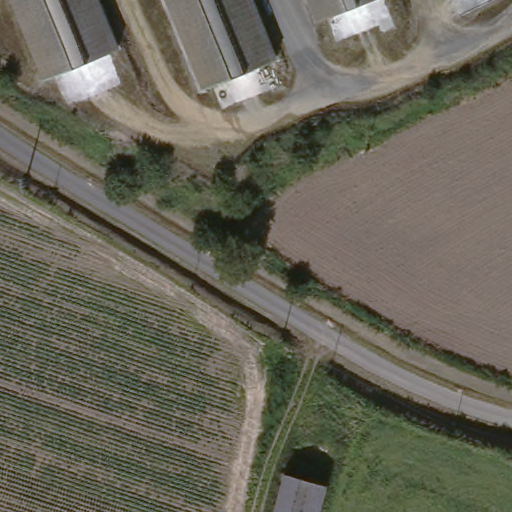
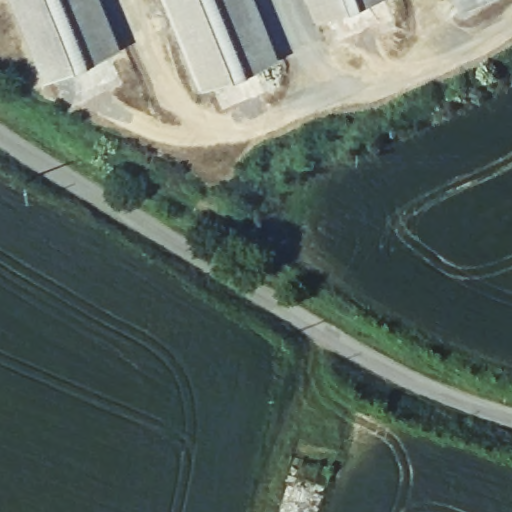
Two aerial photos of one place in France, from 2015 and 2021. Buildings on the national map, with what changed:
unchanged [(33,76),(4,0),(94,0),(112,49),(33,76)]
unchanged [(198,96),(163,0),(251,0),(274,66),(198,96)]
unchanged [(303,0),(367,0),(311,21),(303,0)]
demolished [(283,471),(328,486),(322,512),(272,512),(283,471)]

